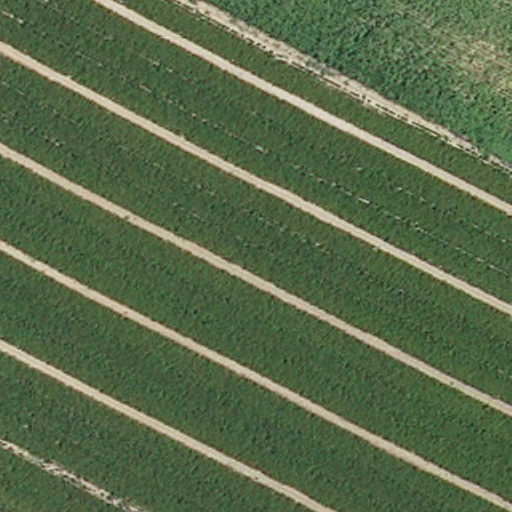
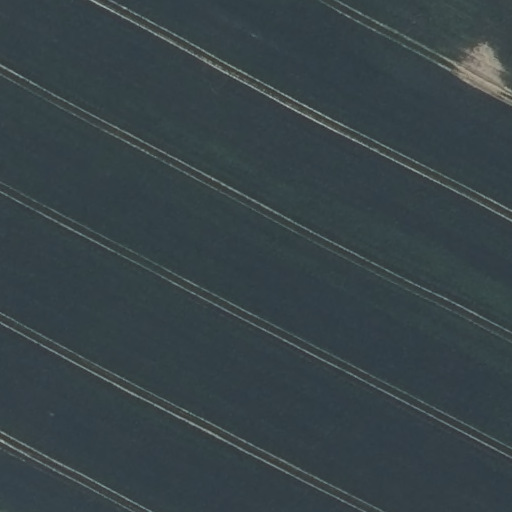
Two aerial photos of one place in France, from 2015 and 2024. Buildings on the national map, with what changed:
[]

